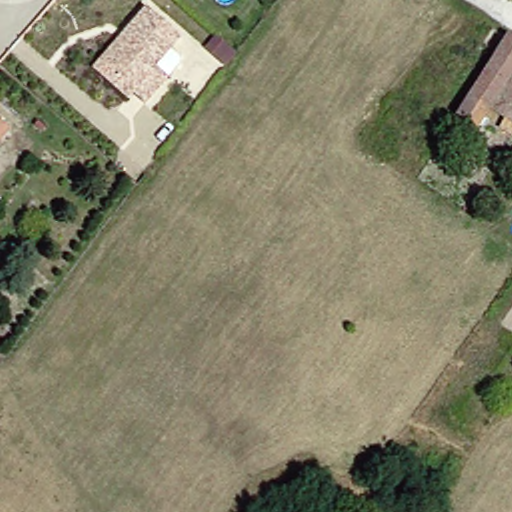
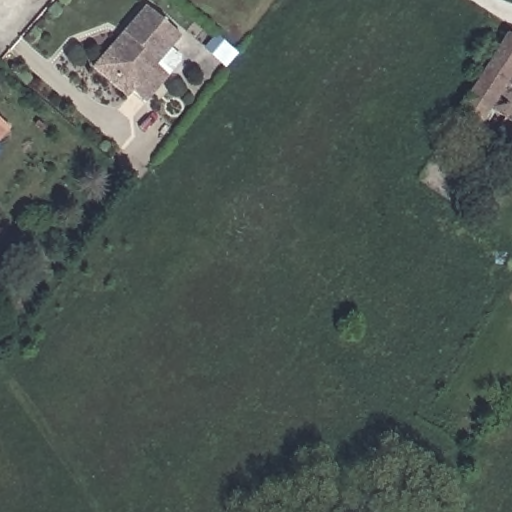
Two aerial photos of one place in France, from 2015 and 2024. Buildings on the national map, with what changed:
unchanged [(100,62),(131,28),(153,2),(187,32),(177,44),(189,55),(175,71),(151,97),(139,87),(135,92),(100,62)]
unchanged [(502,133),(488,125),(494,114),(479,104),(467,122),(447,109),(498,32),(512,41),(512,126),(508,123),(502,133)]
unchanged [(228,65),(208,47),(218,36),(238,53),(228,65)]

